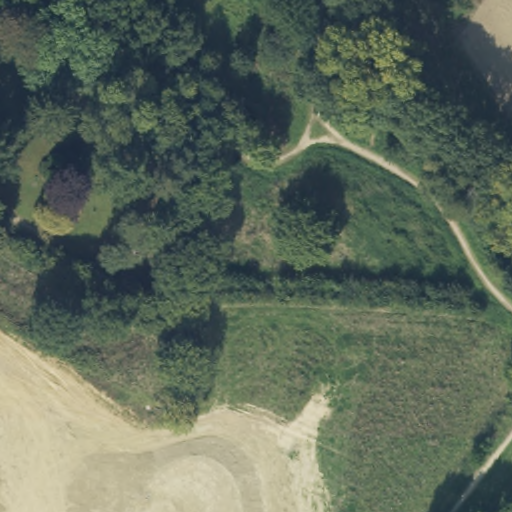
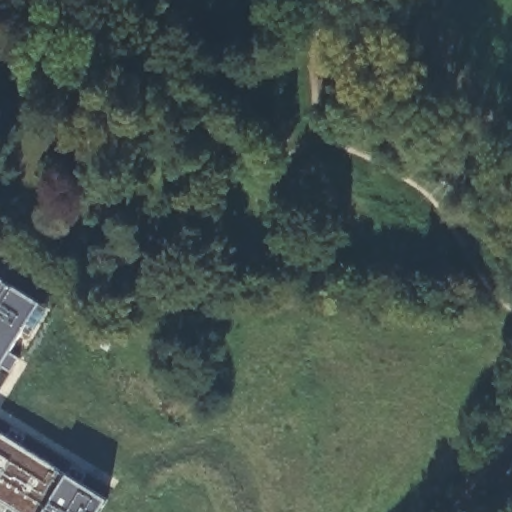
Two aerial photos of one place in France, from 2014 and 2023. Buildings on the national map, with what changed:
new [(10,352),(19,358),(9,373),(0,367),(0,368),(0,278),(40,303),(10,352)]
new [(109,500),(101,512),(17,512),(0,502),(0,432),(69,475),(109,500)]

